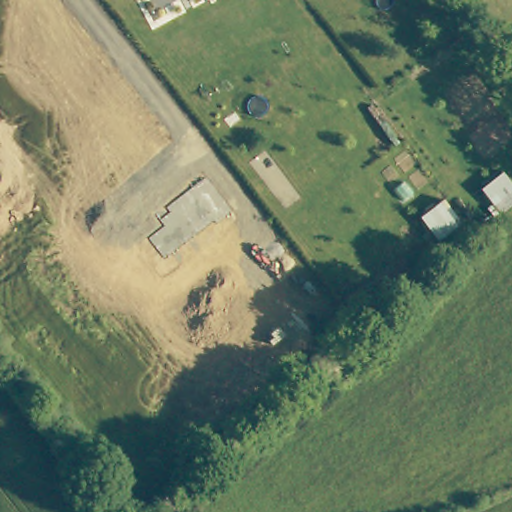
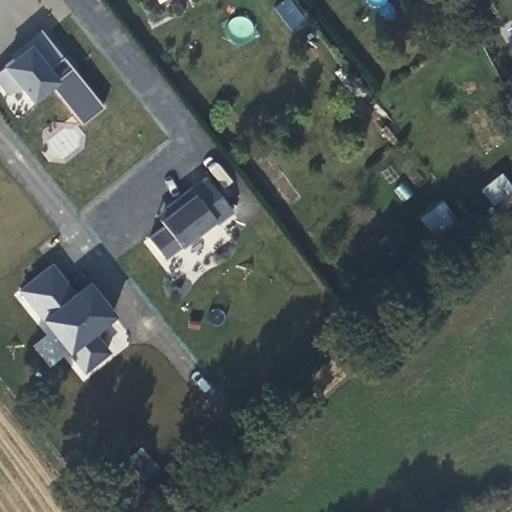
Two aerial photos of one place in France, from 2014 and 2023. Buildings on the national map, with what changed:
new [(59,79),(60,80),(34,101),(21,86),(10,95),(0,83),(0,70),(12,58),(9,54),(41,28),(72,68),(59,79)]
unchanged [(512,189),(492,205),(480,191),(500,175),(512,189)]
unchanged [(233,211),(217,223),(216,220),(165,258),(148,237),(164,226),(157,215),(206,177),(233,211)]
new [(436,204),(449,221),(431,235),(418,217),(436,204)]
new [(51,266),(73,294),(87,283),(114,316),(93,333),(109,353),(84,372),(18,291),(51,266)]

